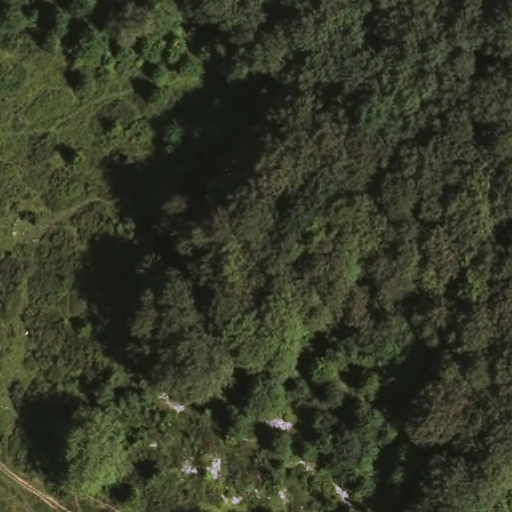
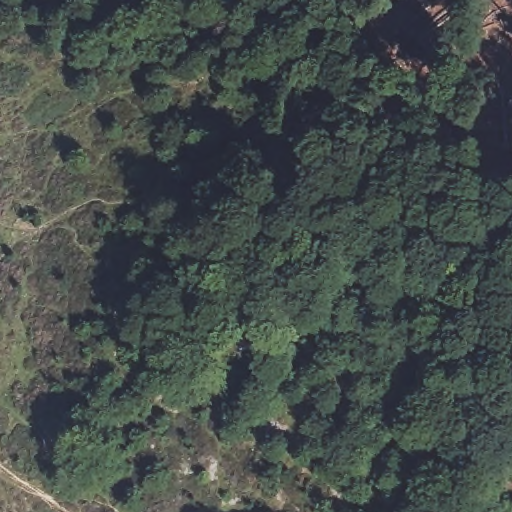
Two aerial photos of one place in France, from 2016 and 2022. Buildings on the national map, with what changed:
unchanged [(327,89),(330,119),(268,118),(266,92),(327,89)]

